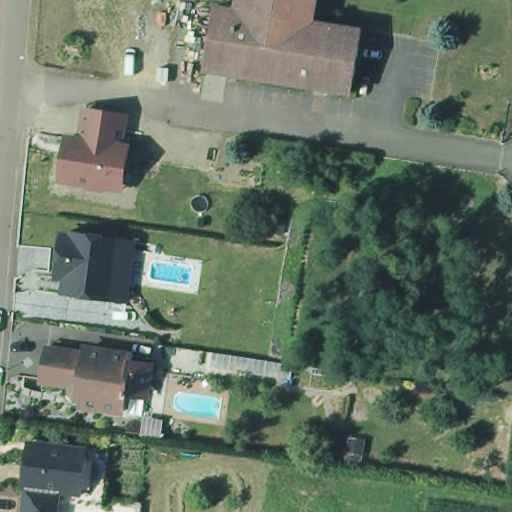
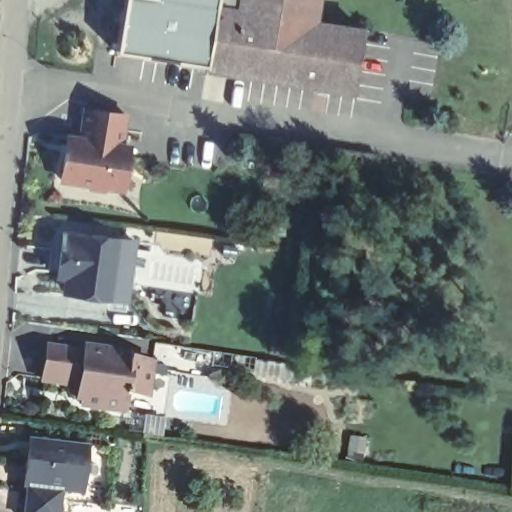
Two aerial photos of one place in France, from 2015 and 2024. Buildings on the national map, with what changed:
new [(240,4),(220,1),(213,35),(208,64),(117,50),(124,0),(241,0),(240,4)]
unchanged [(315,15),(240,4),(241,0),(318,0),(315,15)]
unchanged [(355,87),(208,64),(213,35),(220,1),(240,4),(315,15),(345,20),(365,23),(363,33),(355,87)]
unchanged [(63,129),(77,131),(82,105),(125,111),(120,139),(130,140),(123,190),(58,180),(63,129)]
unchanged [(60,230),(134,238),(125,301),(58,293),(62,277),(54,277),(60,230)]
unchanged [(127,388),(127,392),(124,392),(122,407),(82,401),(82,395),(76,395),(70,386),(70,381),(42,377),(47,343),(85,349),(85,343),(130,351),(129,358),(151,361),(146,390),(127,388)]
unchanged [(80,496),(22,487),(27,441),(86,448),(80,496)]

